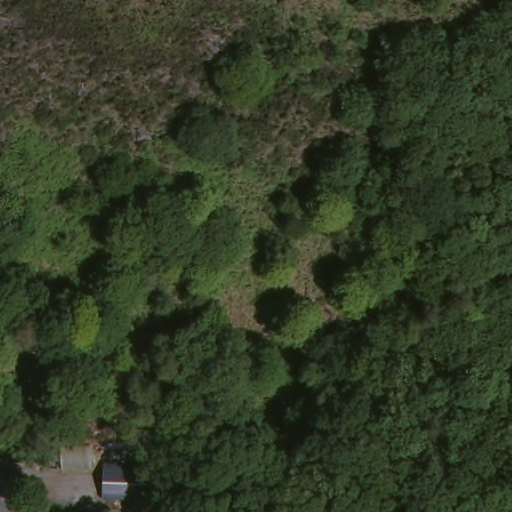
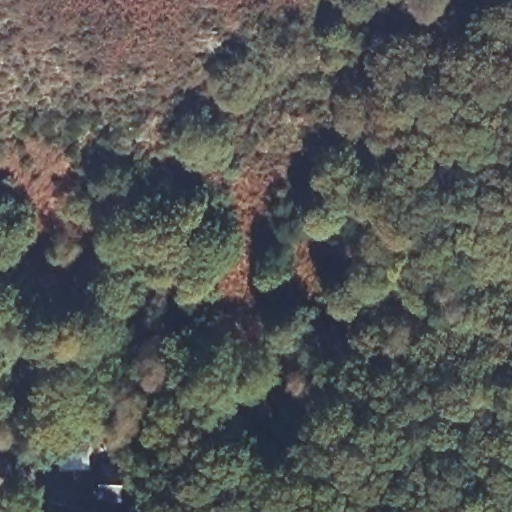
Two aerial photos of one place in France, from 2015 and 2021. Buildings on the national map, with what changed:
unchanged [(143,472),(139,502),(95,498),(96,467),(143,472)]

